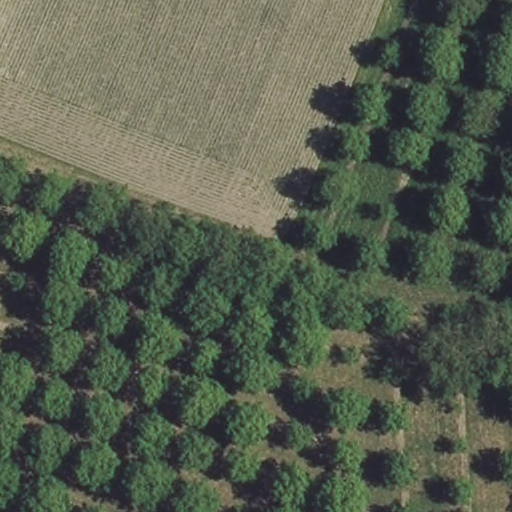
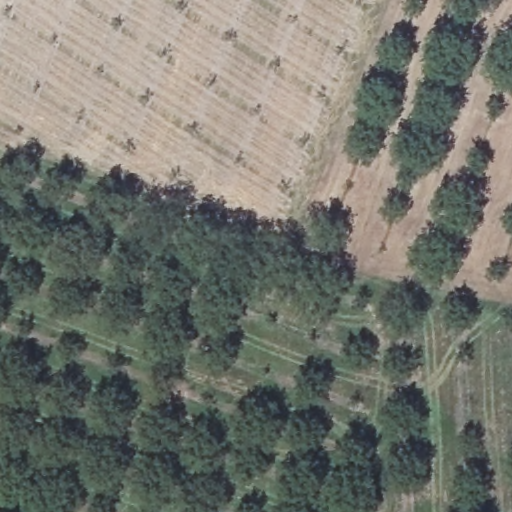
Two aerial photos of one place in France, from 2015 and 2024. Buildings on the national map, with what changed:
[]

